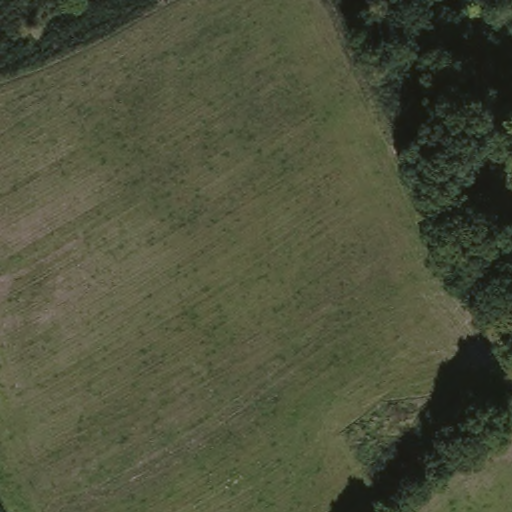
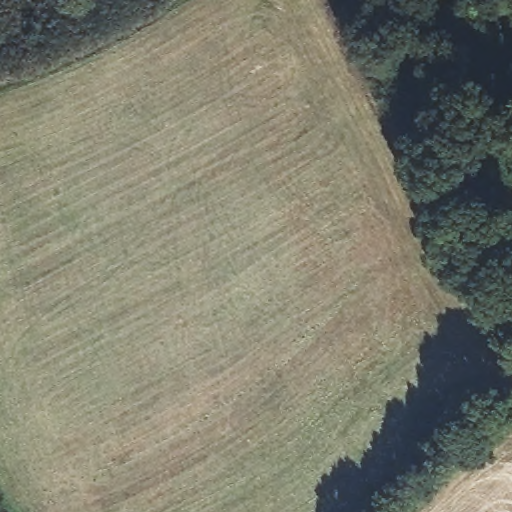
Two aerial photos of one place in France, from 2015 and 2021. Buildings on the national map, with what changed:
unchanged [(466,202),(485,189),(512,224),(512,240),(501,248),(466,202)]

